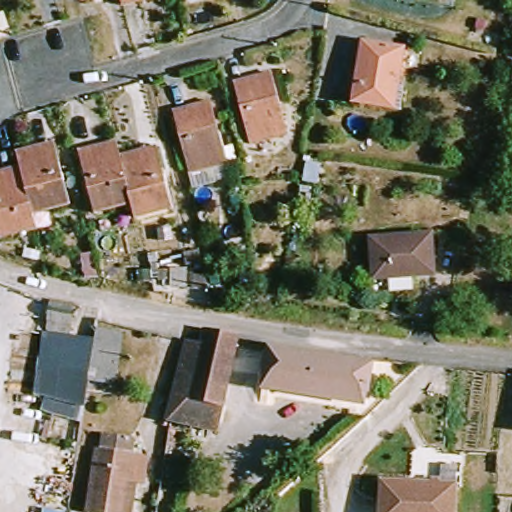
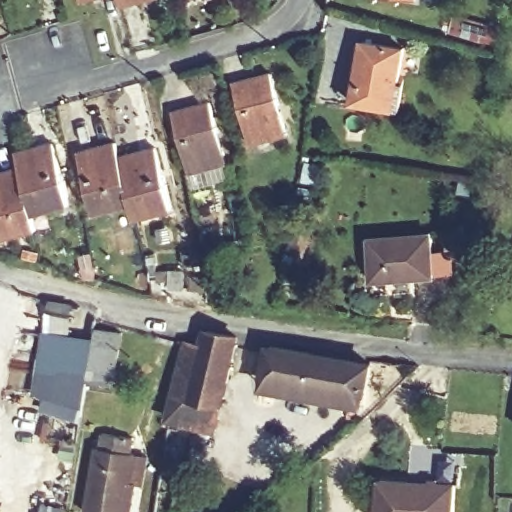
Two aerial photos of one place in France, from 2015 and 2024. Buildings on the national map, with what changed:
unchanged [(90,0),(95,0),(90,1),(90,0)]
unchanged [(126,0),(155,0),(128,7),(126,0)]
unchanged [(352,104),(362,55),(365,46),(393,49),(393,52),(405,55),(405,60),(398,90),(410,92),(405,115),(387,111),(352,104)]
unchanged [(241,86),(273,77),(290,135),(257,144),(241,86)]
unchanged [(225,166),(192,175),(177,115),(210,106),(225,166)]
unchanged [(103,214),(85,150),(120,141),(124,158),(137,205),(103,214)]
unchanged [(25,165),(20,151),(55,142),(68,199),(35,207),(25,165)]
unchanged [(137,205),(124,158),(160,148),(176,207),(140,217),(137,205)]
unchanged [(25,165),(35,207),(40,226),(7,234),(0,204),(0,171),(25,165)]
unchanged [(377,281),(374,244),(435,238),(438,276),(377,281)]
unchanged [(92,381),(80,421),(42,410),(46,398),(34,395),(50,301),(73,305),(70,336),(99,340),(92,381)]
unchanged [(92,381),(99,340),(100,330),(126,333),(119,385),(92,381)]
unchanged [(205,343),(190,413),(173,409),(187,339),(205,343)]
unchanged [(215,436),(186,430),(190,413),(205,343),(234,350),(215,436)]
unchanged [(265,391),(271,347),(377,360),(370,408),(265,391)]
unchanged [(136,512),(92,512),(102,451),(106,452),(110,436),(142,441),(140,456),(145,458),(136,512)]
unchanged [(380,482),(455,485),(454,512),(378,512),(380,482)]

